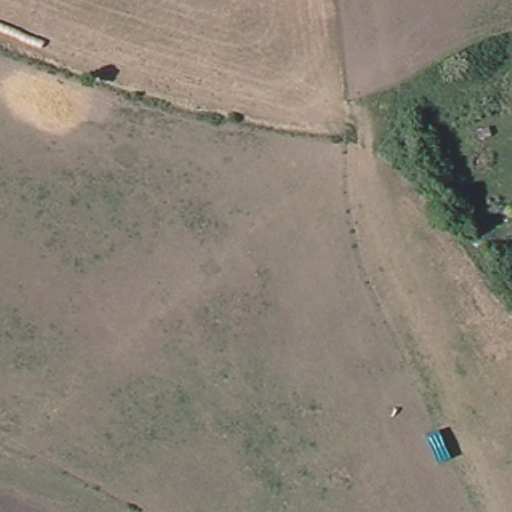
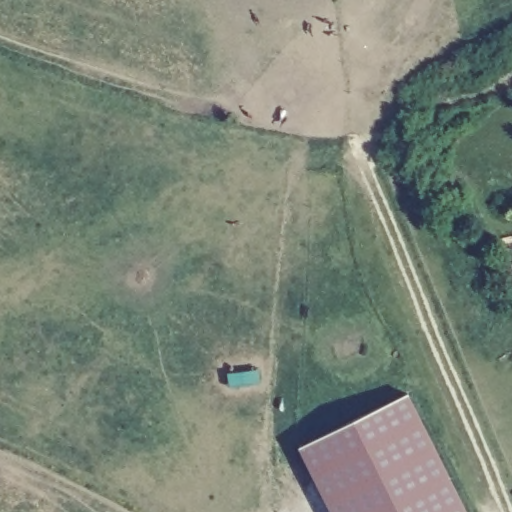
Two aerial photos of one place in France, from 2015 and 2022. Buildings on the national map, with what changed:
new [(408,393),(468,512),(331,512),(300,448),(408,393)]

